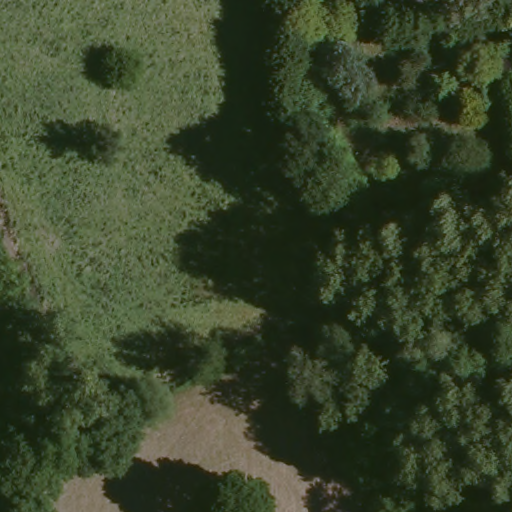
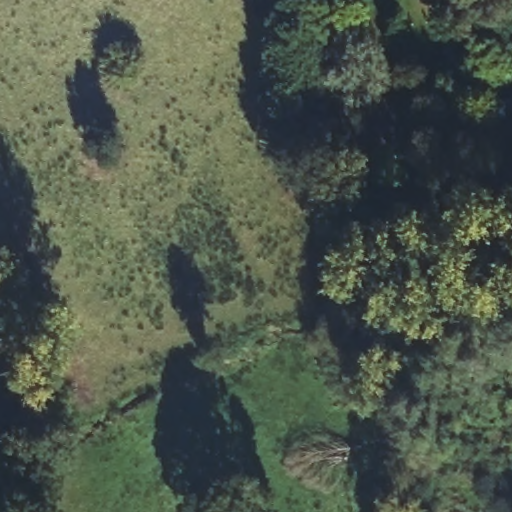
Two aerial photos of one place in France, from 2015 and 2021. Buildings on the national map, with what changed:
[]

